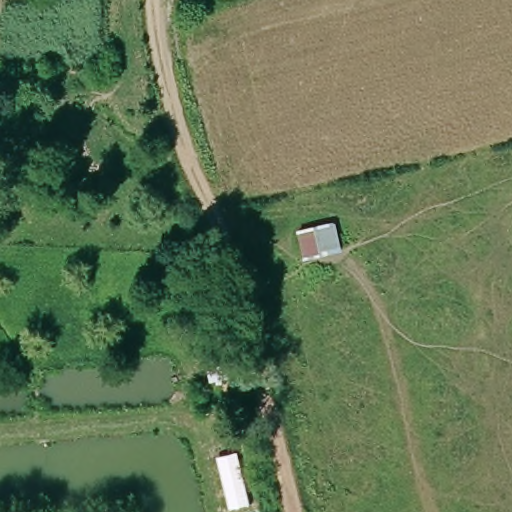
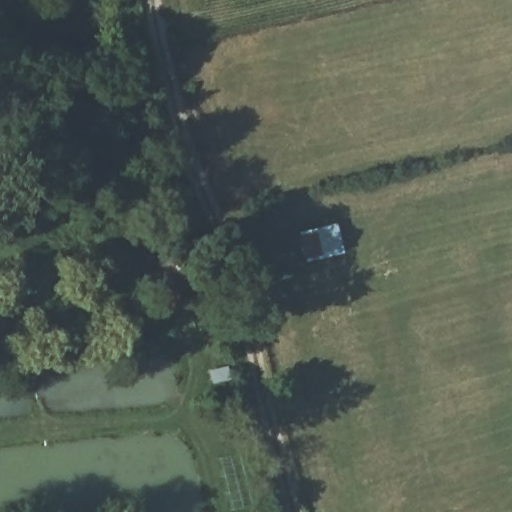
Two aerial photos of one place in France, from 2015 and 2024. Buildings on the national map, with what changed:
unchanged [(310,233),(316,259),(296,263),(289,238),(310,233)]

